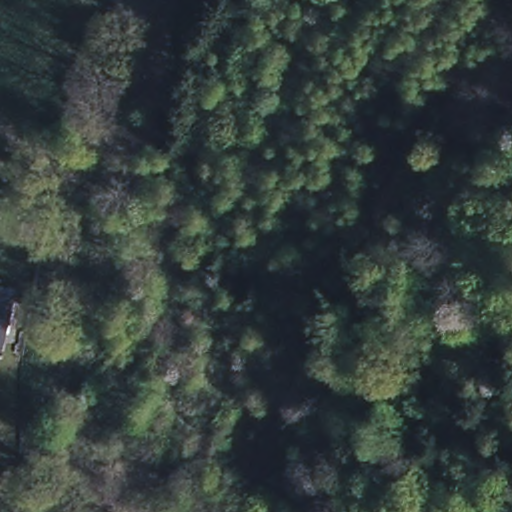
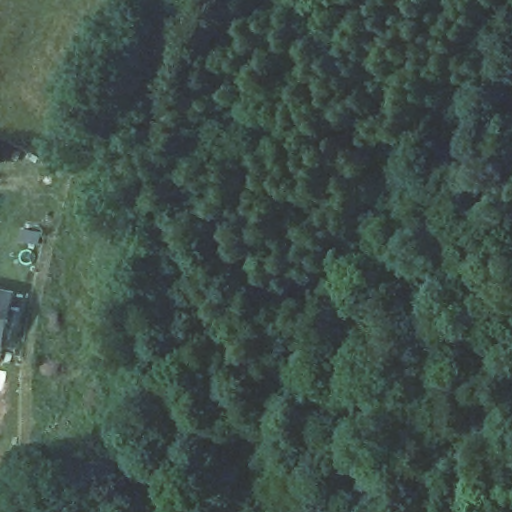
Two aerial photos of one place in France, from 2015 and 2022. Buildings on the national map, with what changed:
unchanged [(16,292),(3,352),(0,356),(0,288),(16,292)]

